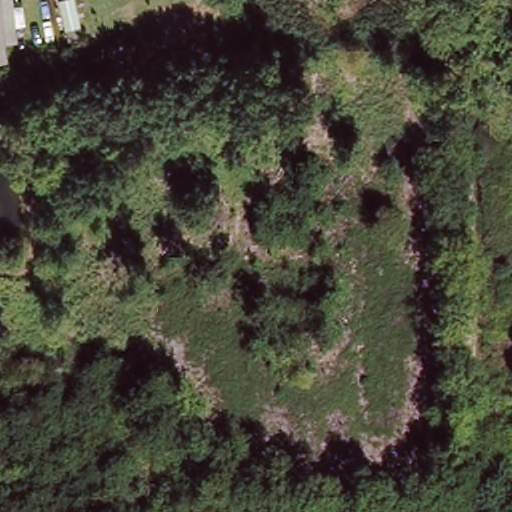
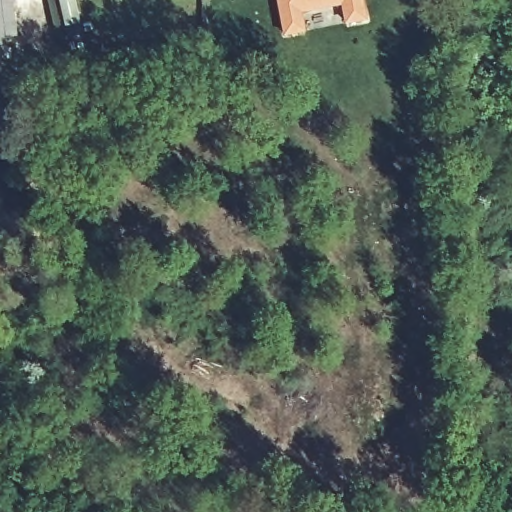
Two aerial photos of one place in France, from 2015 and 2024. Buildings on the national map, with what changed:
unchanged [(2,0),(9,58),(0,59),(0,0),(2,0)]
new [(347,25),(342,6),(302,14),(306,32),(285,37),(278,0),(365,0),(369,19),(347,25)]

